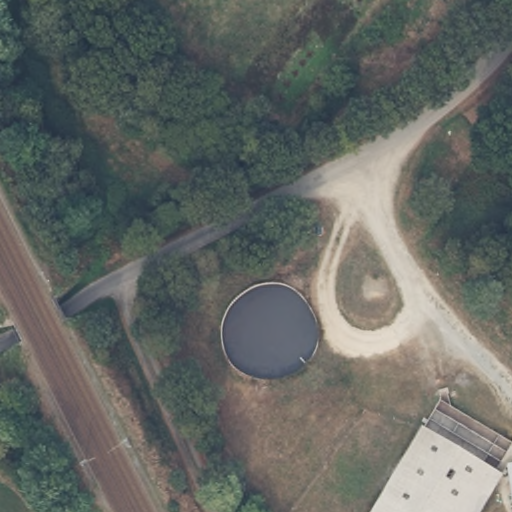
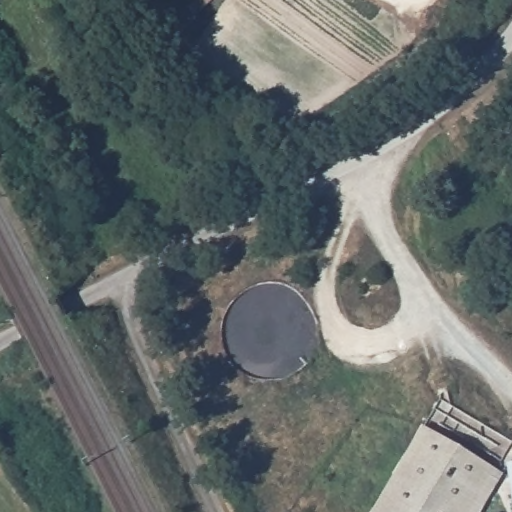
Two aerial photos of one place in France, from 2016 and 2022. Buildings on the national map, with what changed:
unchanged [(372,512),(418,423),(499,466),(475,512),(372,512)]
unchanged [(504,470),(512,469),(512,510),(504,470)]

